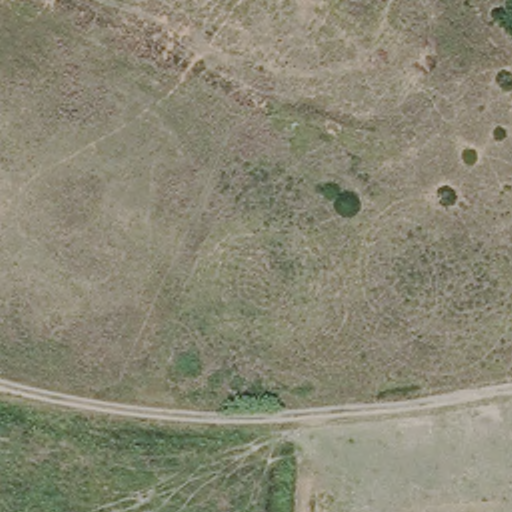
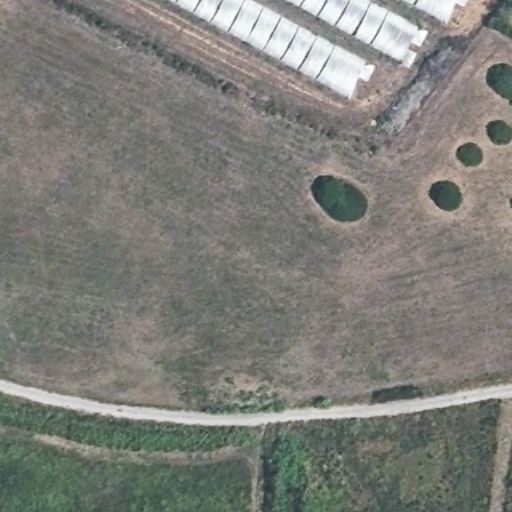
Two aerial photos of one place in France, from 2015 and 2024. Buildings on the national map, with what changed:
new [(367,62),(351,101),(165,0),(251,0),(367,62)]
new [(427,33),(406,67),(282,0),(366,0),(427,33)]
new [(449,26),(400,0),(462,0),(449,26)]

